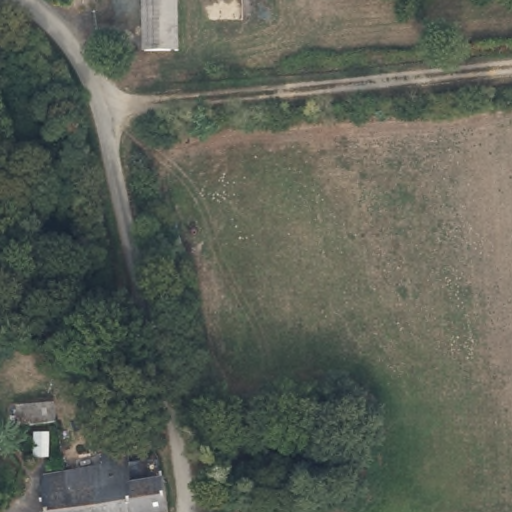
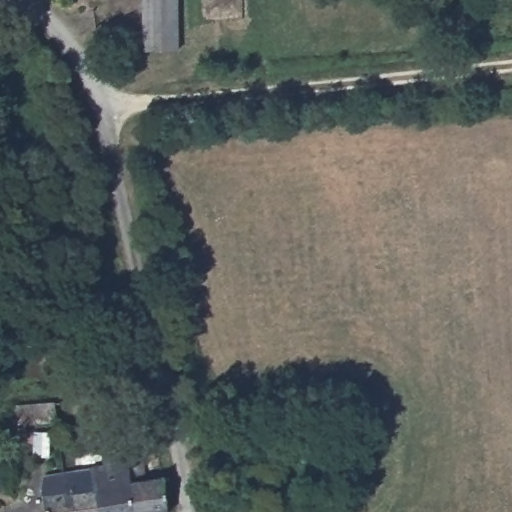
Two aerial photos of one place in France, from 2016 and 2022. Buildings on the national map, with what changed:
unchanged [(143,0),(174,0),(173,46),(143,47),(143,0)]
unchanged [(118,464),(116,442),(137,441),(151,512),(114,512),(106,465),(118,464)]
unchanged [(156,442),(161,480),(181,482),(182,512),(151,512),(137,441),(156,442)]
unchanged [(68,469),(106,465),(114,512),(47,512),(45,473),(68,469)]

